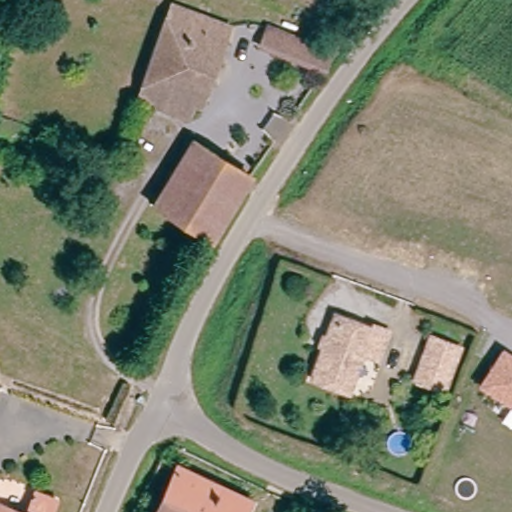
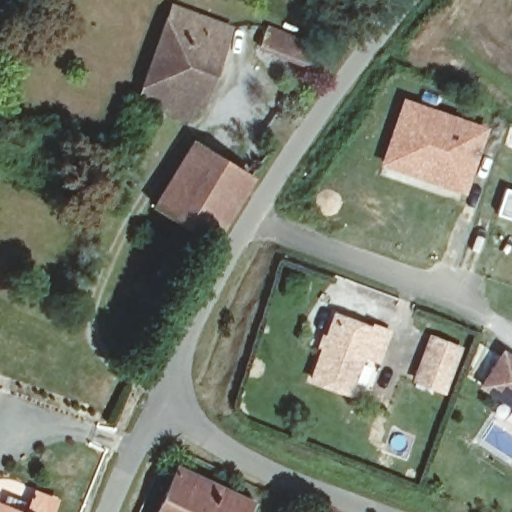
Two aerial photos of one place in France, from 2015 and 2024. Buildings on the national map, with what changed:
unchanged [(170,6),(229,28),(199,108),(189,105),(184,119),(173,115),(136,99),(148,65),(170,6)]
unchanged [(255,46),(259,33),(260,31),(317,51),(321,41),(331,45),(327,54),(326,53),(318,70),(255,46)]
new [(488,126),(467,194),(378,166),(402,96),(488,126)]
unchanged [(152,206),(191,144),(245,178),(209,243),(152,206)]
new [(498,214),(507,189),(512,190),(512,219),(498,214)]
unchanged [(301,379),(326,324),(336,320),(366,334),(369,328),(382,335),(371,361),(356,355),(337,397),(301,379)]
unchanged [(411,379),(428,340),(453,351),(438,392),(411,379)]
unchanged [(501,423),(510,408),(477,388),(502,349),(512,355),(512,429),(501,423)]
unchanged [(173,463),(245,498),(239,512),(150,512),(173,463)]
unchanged [(54,498),(48,512),(25,512),(34,491),(54,498)]
unchanged [(0,506),(14,512),(0,512),(0,506)]

